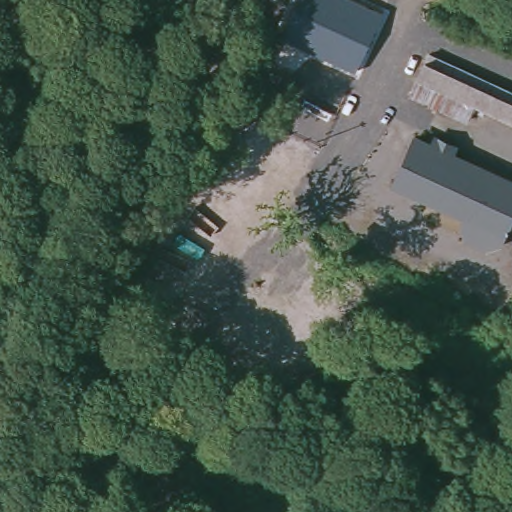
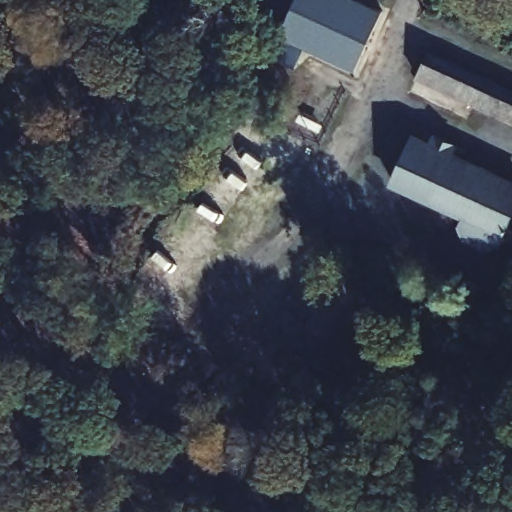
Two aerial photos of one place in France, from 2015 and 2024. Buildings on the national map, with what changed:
unchanged [(356,76),(283,46),(301,0),(330,0),(379,20),(356,76)]
unchanged [(512,90),(512,126),(473,110),(469,124),(411,99),(430,54),(512,90)]
unchanged [(430,142),(435,134),(461,144),(457,152),(512,178),(512,217),(504,234),(493,255),(452,235),(461,215),(390,183),(413,134),(430,142)]

